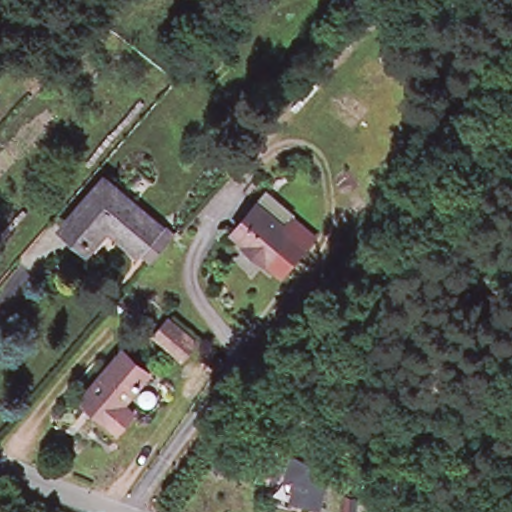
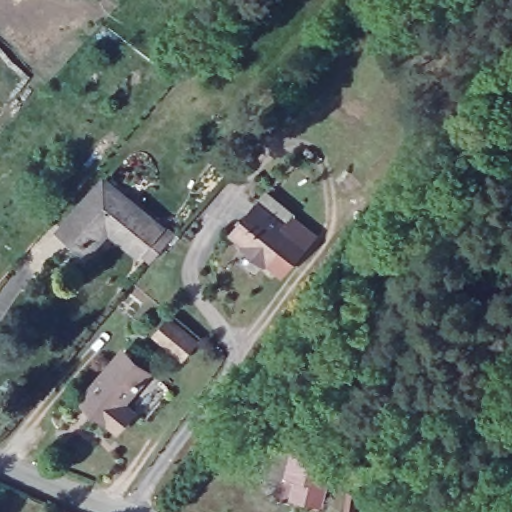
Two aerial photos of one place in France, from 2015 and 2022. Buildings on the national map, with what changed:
unchanged [(185,171),(203,150),(220,165),(202,185),(185,171)]
unchanged [(106,228),(104,231),(97,225),(80,244),(60,226),(97,184),(104,177),(122,192),(116,200),(151,231),(156,225),(167,235),(145,261),(132,251),(106,228)]
unchanged [(301,233),(275,266),(259,255),(257,256),(234,240),(235,239),(220,226),(244,199),(259,212),(270,222),(279,213),(301,233)]
unchanged [(154,334),(164,322),(175,328),(194,342),(182,355),(164,342),(154,334)]
unchanged [(94,406),(83,396),(92,386),(101,376),(97,372),(109,360),(112,363),(125,349),(145,365),(150,370),(120,403),(132,414),(119,429),(101,413),(94,406)]
unchanged [(287,496),(299,448),(305,450),(332,461),(327,477),(337,479),(333,497),(330,507),(287,496)]

